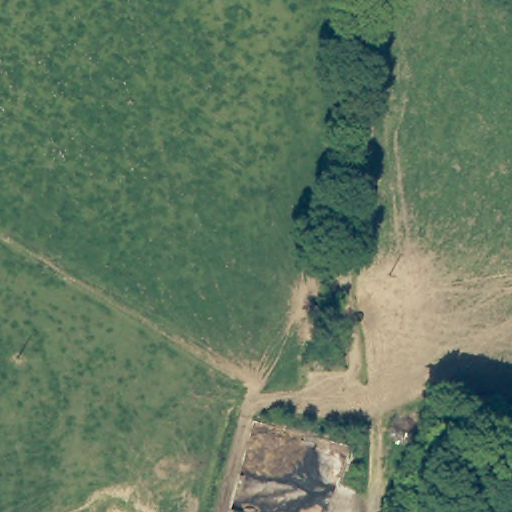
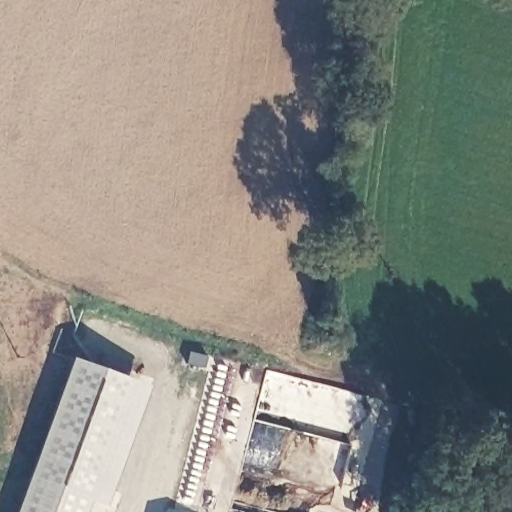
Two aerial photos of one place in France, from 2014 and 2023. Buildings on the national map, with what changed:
new [(149,384),(106,505),(89,499),(84,512),(14,512),(71,356),(149,384)]

